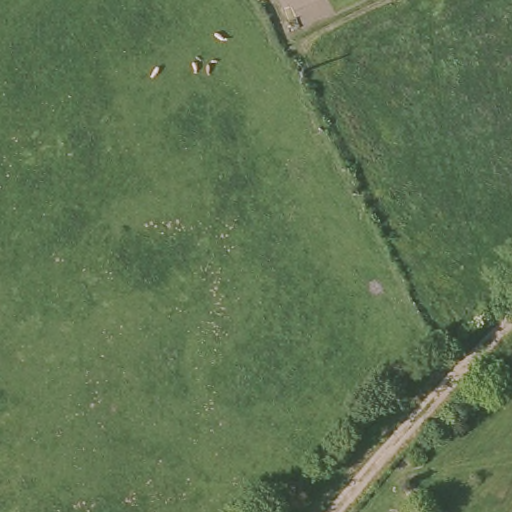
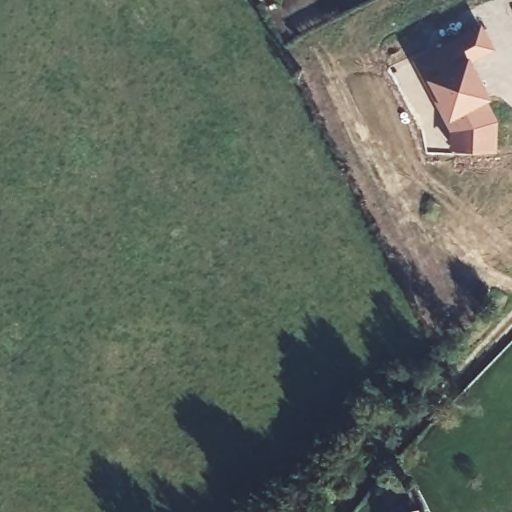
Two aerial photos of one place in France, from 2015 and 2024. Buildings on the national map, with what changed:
new [(451,131),(414,59),(483,23),(496,48),(472,60),(493,97),(489,99),(500,120),(498,151),(452,149),(451,131)]

